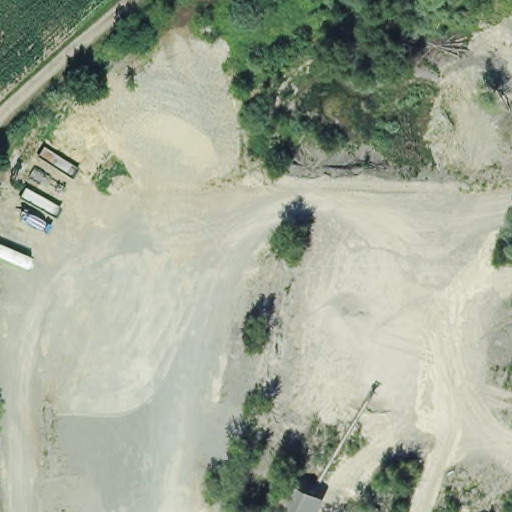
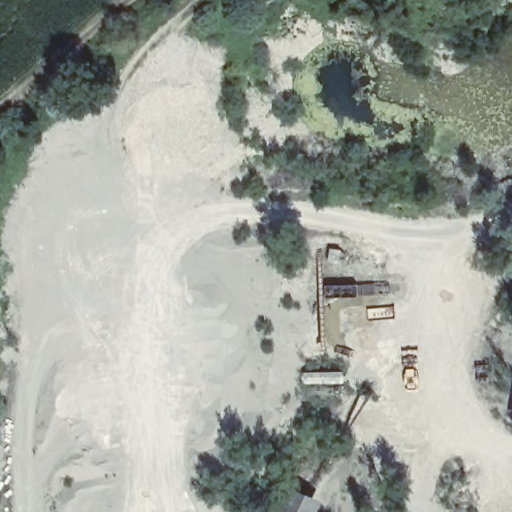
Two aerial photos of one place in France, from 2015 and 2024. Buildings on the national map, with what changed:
unchanged [(325,502),(321,512),(275,512),(285,484),(325,502)]

